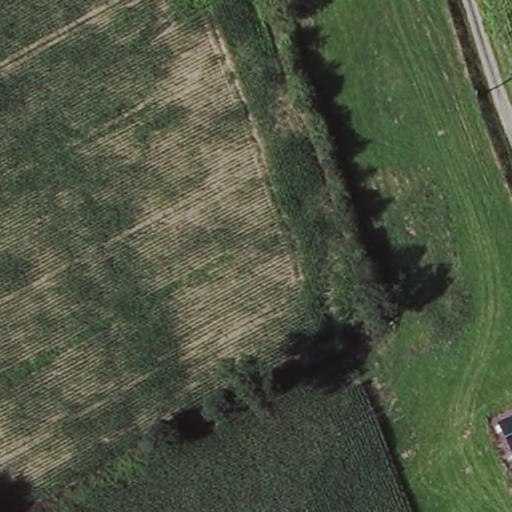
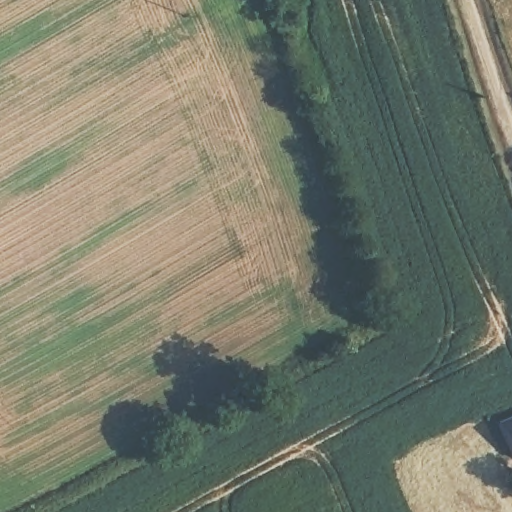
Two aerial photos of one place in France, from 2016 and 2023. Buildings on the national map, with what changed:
unchanged [(512,426),(512,442),(506,428),(512,426)]

